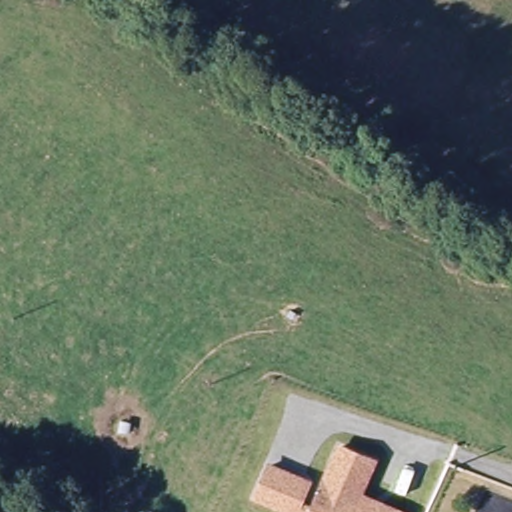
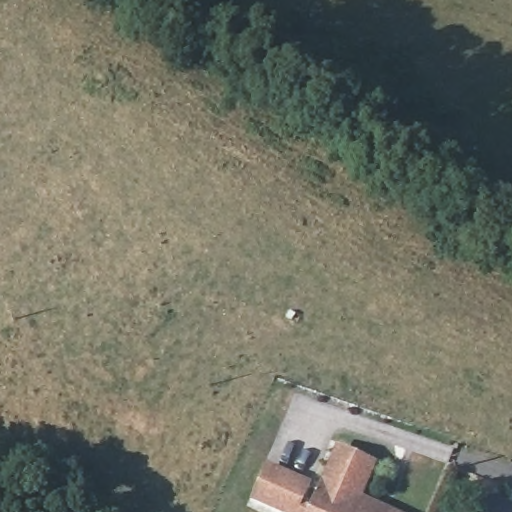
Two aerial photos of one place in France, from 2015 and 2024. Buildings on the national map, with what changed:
unchanged [(303,501),(310,504),(336,444),(377,461),(362,496),(396,512),(274,512),(249,502),(266,464),(310,482),(303,501)]

